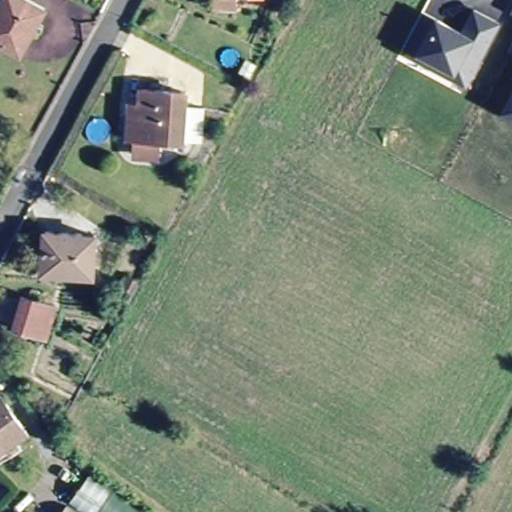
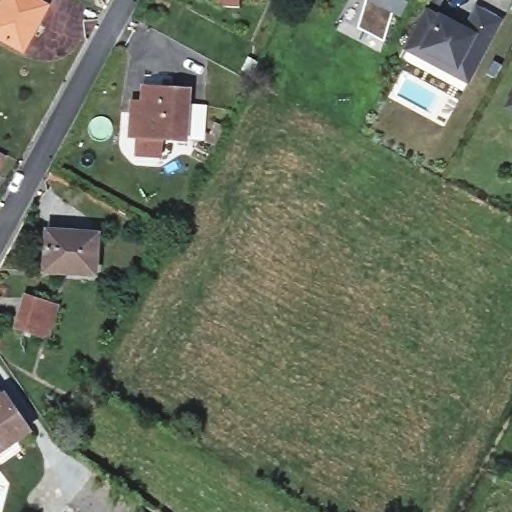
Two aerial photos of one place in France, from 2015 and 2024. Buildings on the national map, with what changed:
unchanged [(22,54),(0,41),(0,11),(6,0),(28,0),(45,9),(22,54)]
unchanged [(213,0),(240,0),(240,4),(213,4),(213,0)]
new [(383,44),(357,30),(365,0),(396,0),(395,2),(383,44)]
unchanged [(468,81),(452,74),(455,65),(434,55),(423,49),(420,58),(403,49),(423,9),(451,24),(463,30),(476,7),(500,19),(468,81)]
unchanged [(512,44),(512,48),(511,48),(512,44)]
unchanged [(187,96),(184,145),(131,143),(132,110),(142,111),(142,95),(187,96)]
new [(2,163),(0,167),(0,161),(2,163)]
unchanged [(96,237),(93,278),(44,273),(46,234),(96,237)]
unchanged [(57,310),(50,340),(21,333),(27,303),(57,310)]
unchanged [(2,403),(9,399),(30,431),(0,451),(0,399),(2,403)]

